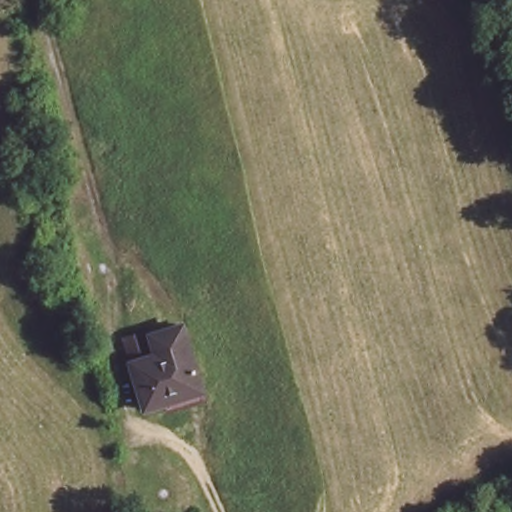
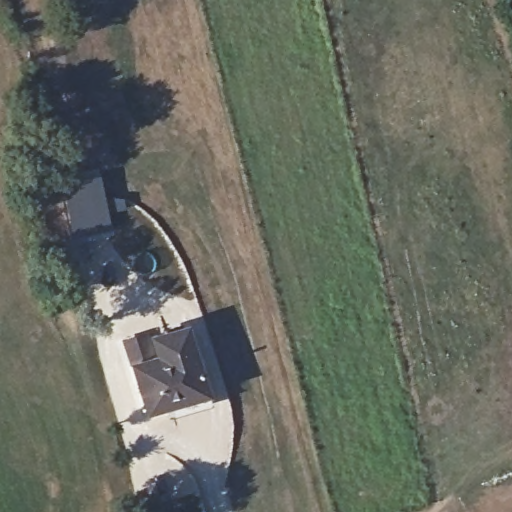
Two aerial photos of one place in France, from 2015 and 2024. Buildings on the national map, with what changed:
new [(70,235),(60,183),(97,176),(110,228),(70,235)]
unchanged [(143,332),(180,321),(184,342),(196,382),(163,392),(159,396),(136,403),(124,361),(115,336),(138,330),(143,355),(150,352),(143,332)]

